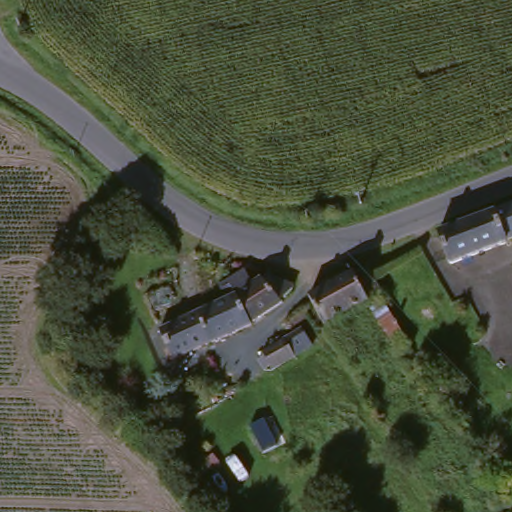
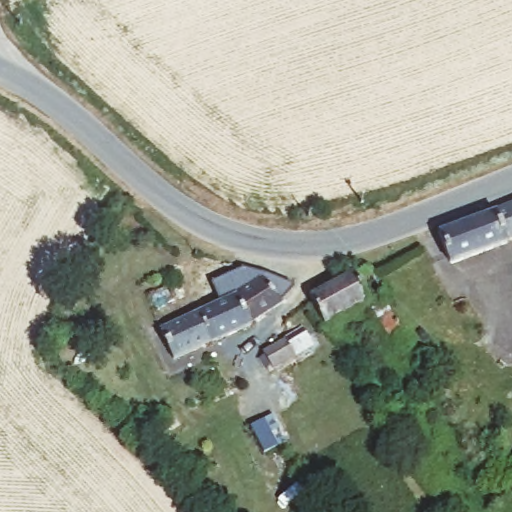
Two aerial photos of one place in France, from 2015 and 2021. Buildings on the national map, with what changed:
unchanged [(512,206),(512,239),(445,264),(435,236),(512,206)]
unchanged [(368,270),(381,295),(323,320),(312,300),(310,295),(368,270)]
unchanged [(281,295),(290,303),(275,309),(278,317),(247,332),(234,302),(224,306),(217,291),(246,280),(252,292),(265,286),(281,295)]
unchanged [(214,311),(224,306),(234,302),(247,332),(209,347),(197,318),(214,311)]
unchanged [(370,308),(385,302),(405,340),(407,342),(392,350),(386,332),(382,333),(377,322),(376,320),(370,308)]
unchanged [(197,318),(209,347),(204,350),(169,364),(156,334),(197,318)]
unchanged [(290,327),(300,345),(259,363),(256,360),(248,363),(245,356),(250,353),(246,347),(253,343),(290,327)]
unchanged [(397,357),(410,381),(398,385),(387,363),(387,362),(397,357)]

